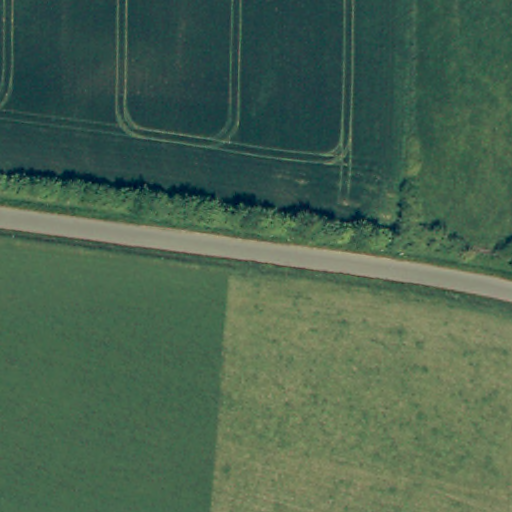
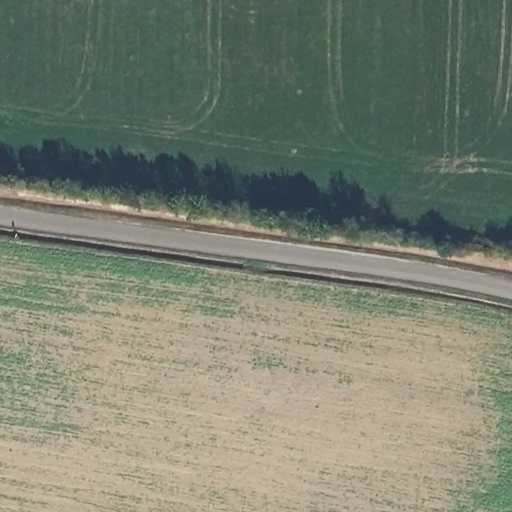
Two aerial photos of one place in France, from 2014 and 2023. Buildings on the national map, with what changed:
[]

